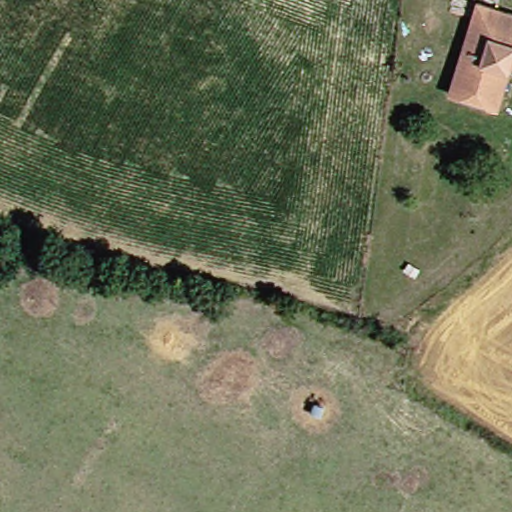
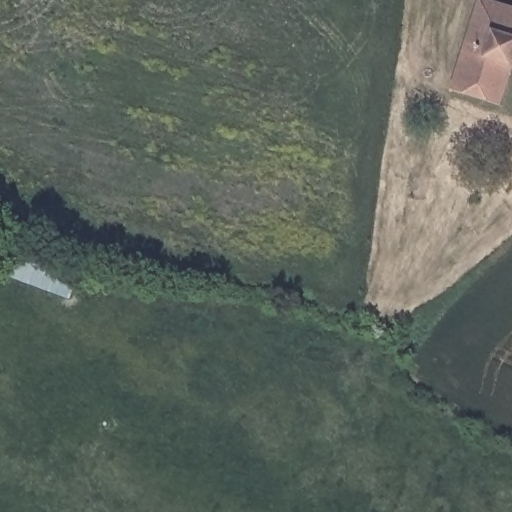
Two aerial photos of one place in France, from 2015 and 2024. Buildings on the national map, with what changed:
unchanged [(502,104),(454,87),(482,0),(498,0),(512,5),(512,74),(502,104)]

